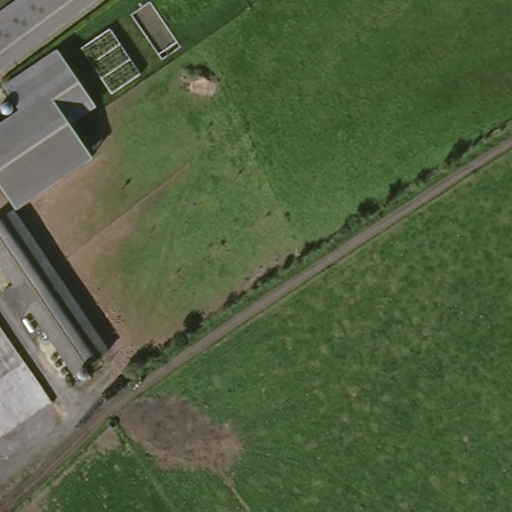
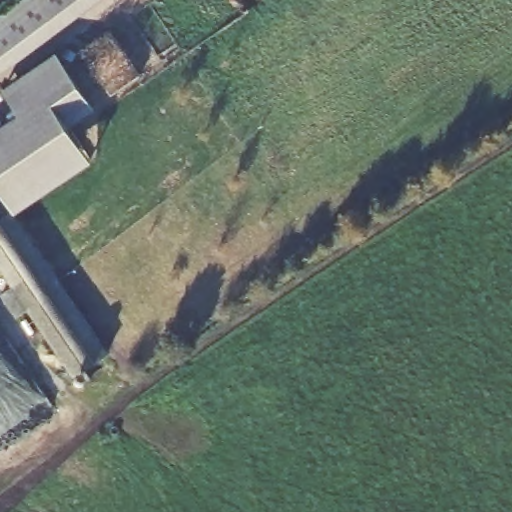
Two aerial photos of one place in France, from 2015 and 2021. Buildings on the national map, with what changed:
unchanged [(0,82),(0,13),(17,0),(112,0),(0,82)]
unchanged [(17,104),(69,66),(108,118),(83,137),(108,171),(31,224),(0,181),(0,153),(34,127),(17,104)]
unchanged [(34,311),(21,320),(5,294),(16,288),(0,264),(0,223),(17,212),(110,354),(78,377),(34,311)]

